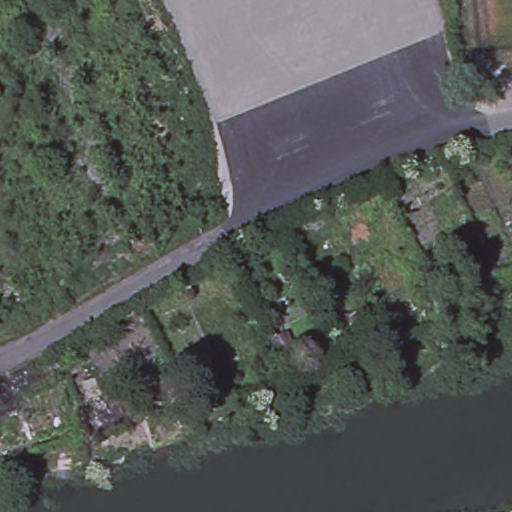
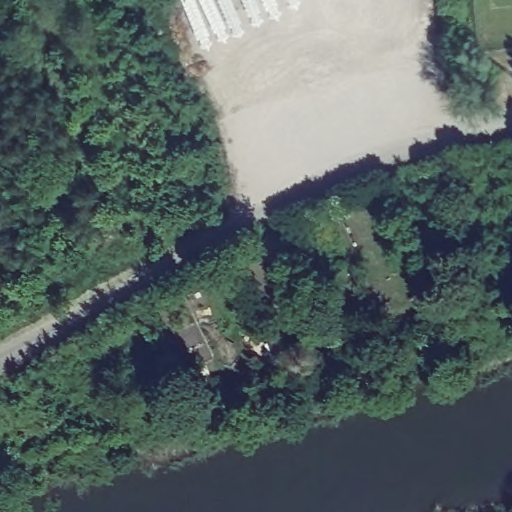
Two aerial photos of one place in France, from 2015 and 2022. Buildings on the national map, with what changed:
unchanged [(512,290),(506,292),(492,266),(511,257),(512,259),(512,290)]

